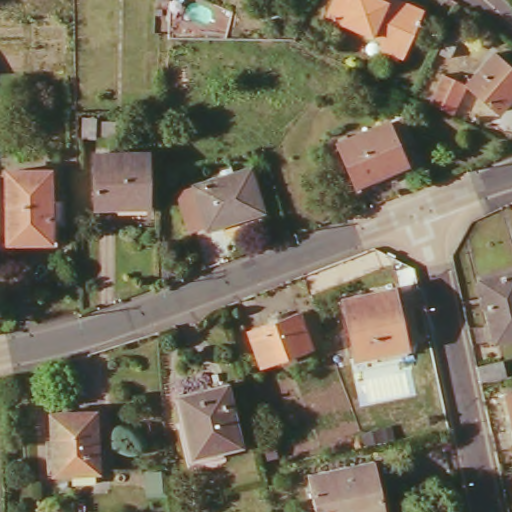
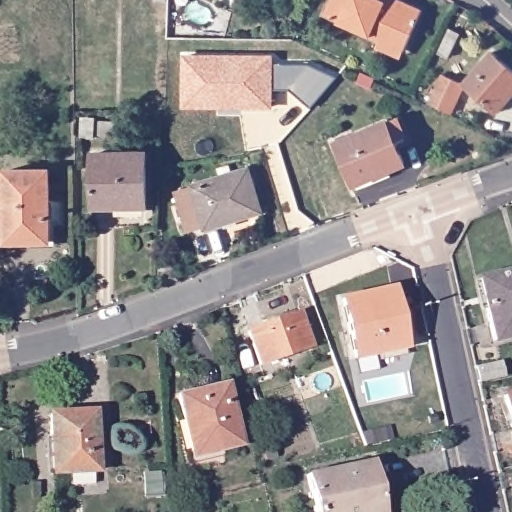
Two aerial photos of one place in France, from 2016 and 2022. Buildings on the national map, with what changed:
unchanged [(338,0),(365,0),(375,4),(377,0),(384,0),(424,18),(407,58),(329,23),(338,0)]
unchanged [(452,33),(462,38),(452,59),(442,54),(452,33)]
unchanged [(467,84),(494,53),(512,69),(512,100),(500,113),(467,84)]
new [(183,59),(270,59),(270,66),(307,66),(335,79),(310,109),(287,91),(270,91),(270,109),(222,109),(183,109),(183,94),(183,59)]
unchanged [(445,74),(466,84),(452,114),(432,104),(445,74)]
unchanged [(334,144),(399,118),(410,143),(395,149),(402,164),(352,185),(334,144)]
unchanged [(91,155),(145,154),(144,208),(92,208),(91,155)]
unchanged [(4,171),(45,171),(47,203),(52,203),(52,217),(47,217),(47,242),(5,242),(4,171)]
unchanged [(172,194),(175,189),(245,171),(257,213),(217,224),(217,228),(202,232),(200,228),(183,232),(172,194)]
unchanged [(159,266),(169,262),(175,279),(158,285),(159,266)]
unchanged [(477,280),(512,272),(512,336),(492,341),(477,280)]
unchanged [(341,300),(390,289),(402,348),(353,358),(341,300)]
unchanged [(296,314),(309,349),(260,366),(247,331),(296,314)]
unchanged [(475,368),(500,362),(502,375),(477,381),(475,368)]
unchanged [(187,419),(180,421),(175,396),(222,384),(238,448),(195,457),(187,419)]
unchanged [(504,396),(512,394),(512,431),(504,396)]
unchanged [(50,414),(92,412),(95,471),(53,473),(50,414)]
unchanged [(309,474),(374,464),(381,512),(314,512),(309,474)]

